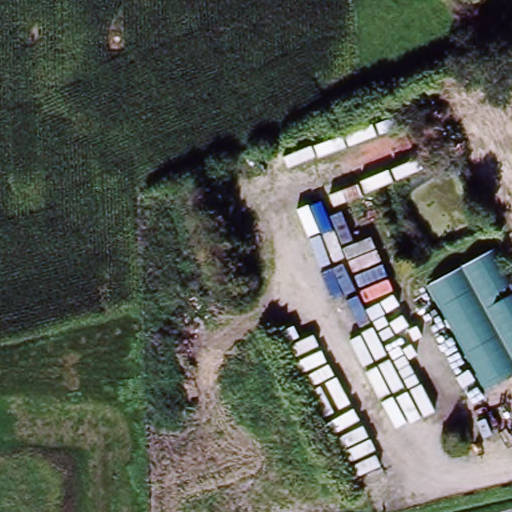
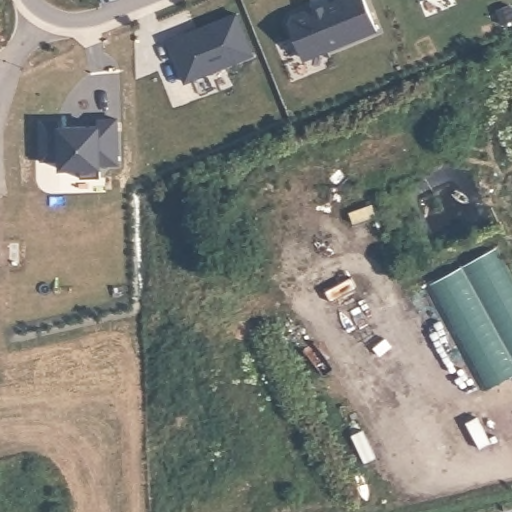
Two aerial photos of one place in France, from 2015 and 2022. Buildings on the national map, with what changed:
new [(311,16),(324,11),(324,10),(347,0),(362,0),(376,34),(327,54),(326,51),(301,61),(287,27),(291,20),(310,12),(311,16)]
new [(417,0),(425,0),(418,3),(417,0)]
new [(252,59),(184,86),(168,45),(236,18),(252,59)]
new [(59,124),(59,131),(98,130),(97,123),(116,122),(118,167),(99,168),(100,181),(79,182),(79,172),(59,172),(59,163),(41,163),(40,124),(59,124)]
unchanged [(504,263),(512,277),(512,377),(484,394),(428,287),(496,250),(504,263)]

